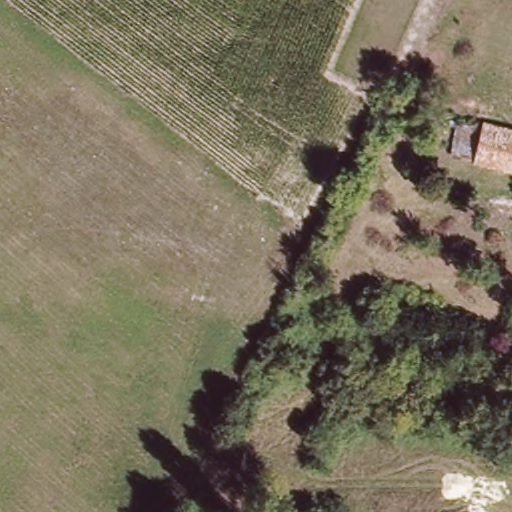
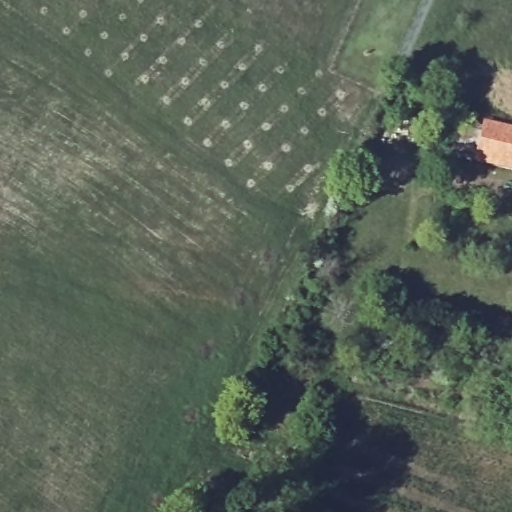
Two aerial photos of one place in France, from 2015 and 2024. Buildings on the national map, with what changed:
unchanged [(483,129),(512,136),(512,176),(471,164),(483,129)]

